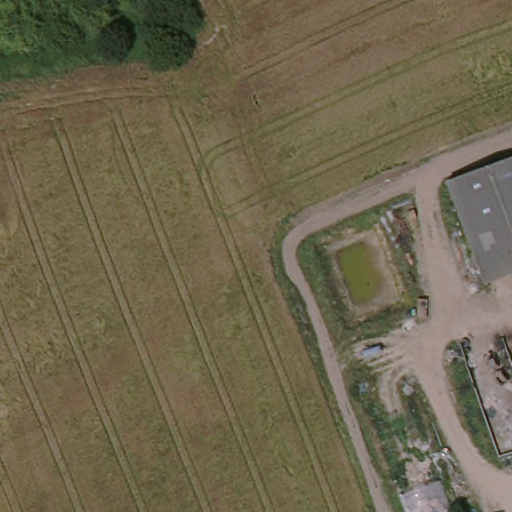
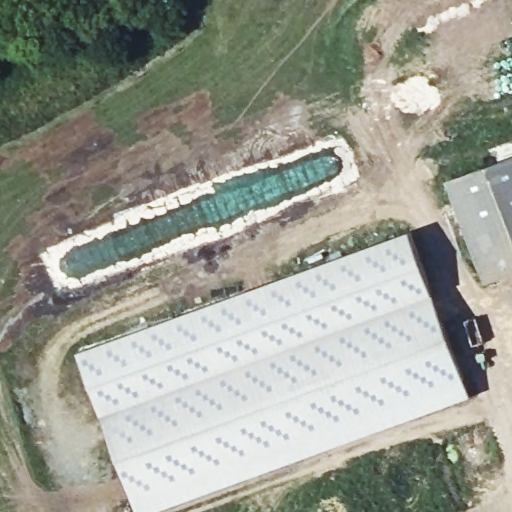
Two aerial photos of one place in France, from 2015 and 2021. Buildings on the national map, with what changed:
unchanged [(512,162),(512,281),(482,290),(442,188),(512,162)]
new [(411,229),(471,396),(148,512),(141,512),(80,349),(411,229)]

